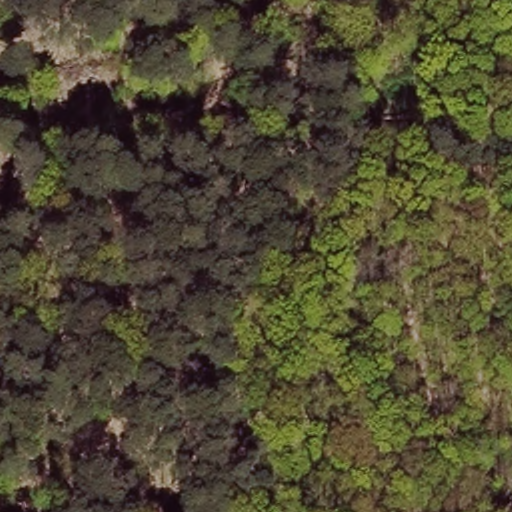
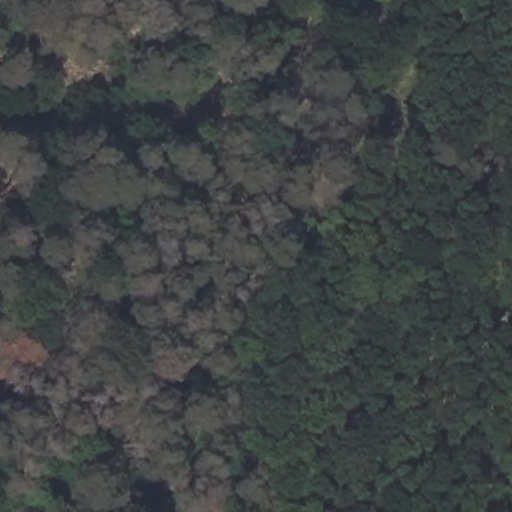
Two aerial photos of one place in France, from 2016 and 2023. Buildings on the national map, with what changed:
[]

